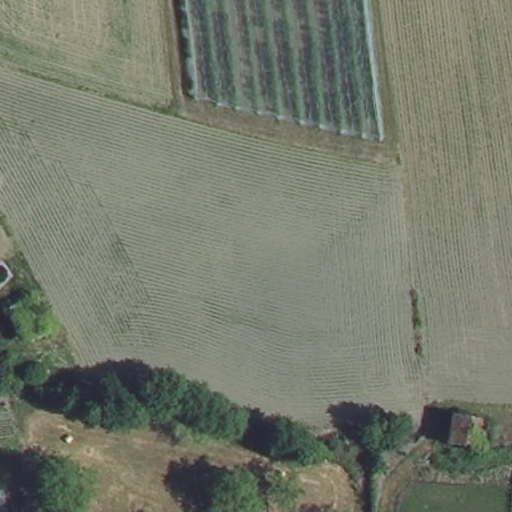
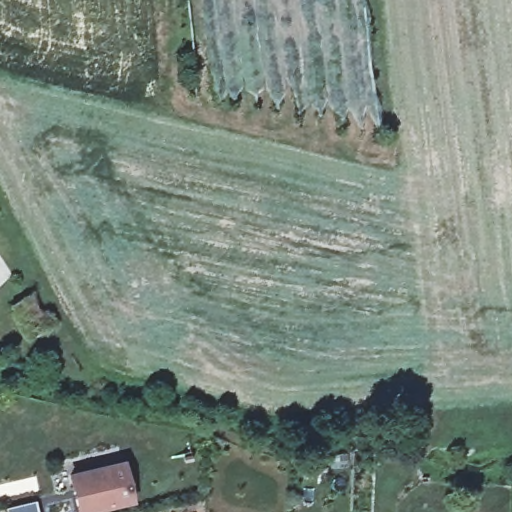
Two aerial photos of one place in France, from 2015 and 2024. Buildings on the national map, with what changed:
unchanged [(38,314),(47,309),(54,321),(29,336),(9,305),(26,294),(38,314)]
new [(124,461),(135,506),(108,512),(76,512),(67,473),(124,461)]

